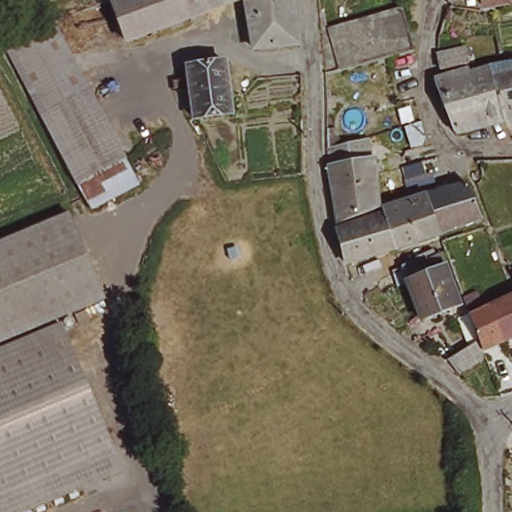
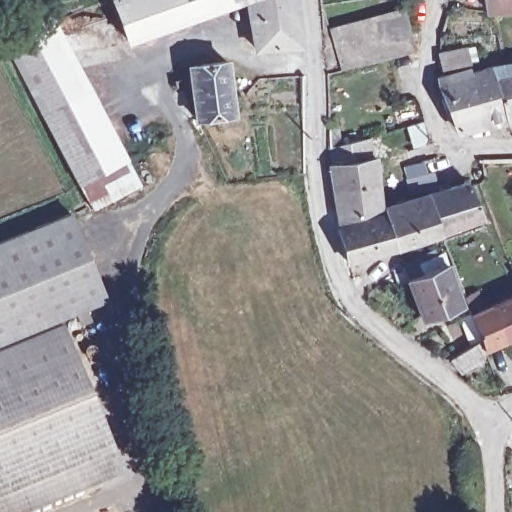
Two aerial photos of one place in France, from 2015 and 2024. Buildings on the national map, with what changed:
unchanged [(293,37),(298,36),(300,50),(295,51),(250,55),(243,2),(123,46),(115,22),(105,0),(288,0),(293,37)]
unchanged [(512,11),(485,15),(483,0),(512,0),(512,11)]
unchanged [(407,51),(405,48),(392,52),(340,67),(330,26),(403,5),(410,30),(415,48),(407,51)]
unchanged [(120,158),(91,173),(71,184),(0,47),(0,39),(43,16),(72,69),(121,158),(120,158)]
unchanged [(460,41),(463,56),(437,61),(433,45),(460,41)]
unchanged [(490,60),(501,58),(512,58),(512,115),(504,117),(502,111),(490,60)]
unchanged [(477,117),(468,85),(472,84),(467,65),(490,60),(502,111),(477,117)]
unchanged [(466,62),(467,65),(472,84),(468,85),(477,117),(453,122),(445,95),(432,72),(466,62)]
unchanged [(190,125),(183,73),(220,67),(222,69),(228,121),(190,125)]
unchanged [(330,143),(370,132),(371,157),(376,157),(377,182),(333,189),(330,143)]
unchanged [(87,212),(71,184),(91,173),(120,158),(135,187),(87,212)]
unchanged [(405,178),(426,175),(432,174),(436,189),(431,190),(411,194),(405,178)]
unchanged [(337,222),(333,189),(377,182),(379,205),(337,222)]
unchanged [(471,182),(485,217),(440,234),(428,195),(432,193),(471,182)]
unchanged [(412,198),(428,195),(440,234),(396,247),(385,211),(383,207),(412,198)]
unchanged [(339,227),(385,211),(396,247),(350,262),(339,227)]
unchanged [(70,212),(106,300),(0,345),(0,242),(70,212)]
unchanged [(420,318),(408,287),(388,292),(382,277),(402,266),(416,261),(415,258),(433,253),(436,259),(445,257),(463,308),(445,316),(427,322),(421,327),(416,323),(420,318)]
unchanged [(452,362),(447,366),(437,358),(450,348),(458,357),(460,355),(475,346),(468,332),(465,323),(473,320),(494,310),(512,301),(512,341),(507,343),(485,353),(485,363),(465,376),(452,362)]
unchanged [(27,512),(0,512),(0,349),(62,323),(125,471),(27,512)]
unchanged [(512,362),(512,370),(510,364),(512,362)]

